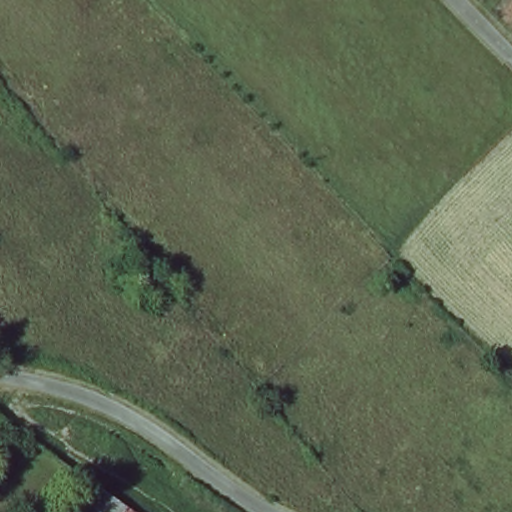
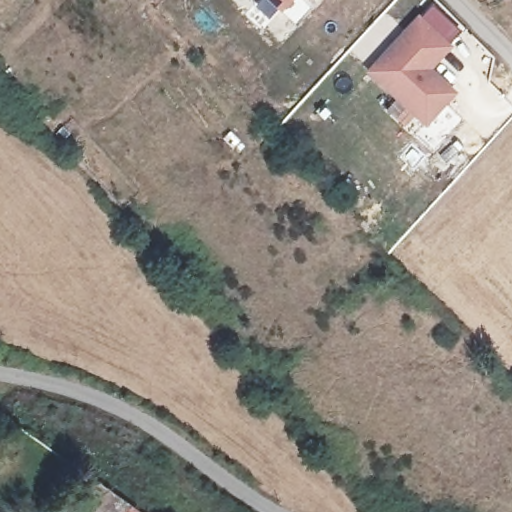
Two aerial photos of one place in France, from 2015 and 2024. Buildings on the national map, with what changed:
new [(270,0),(294,0),(283,12),(270,0)]
new [(431,71),(457,93),(424,127),(365,74),(418,16),(449,47),(431,71)]
unchanged [(98,482),(119,498),(139,512),(75,512),(98,482)]

